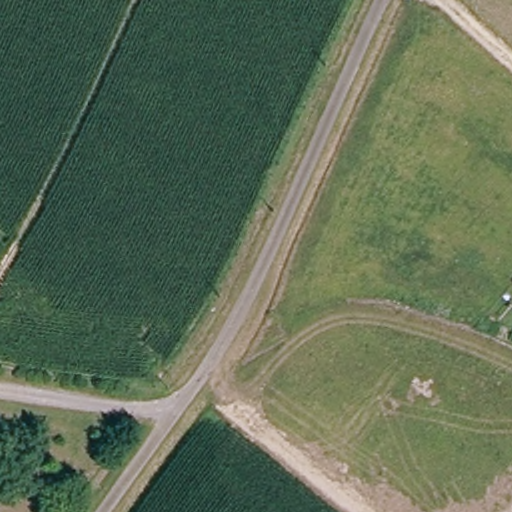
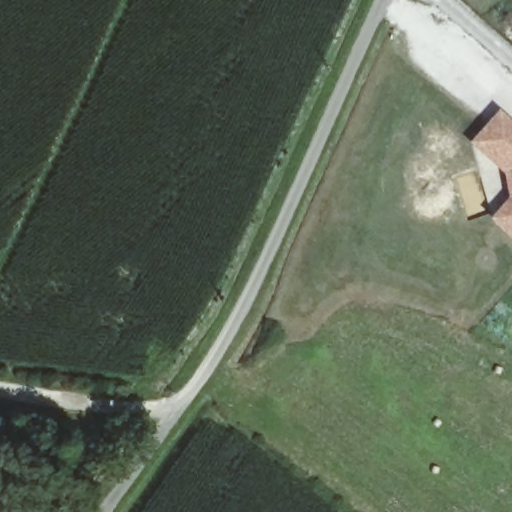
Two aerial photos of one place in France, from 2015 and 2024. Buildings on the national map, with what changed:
new [(512,239),(489,219),(508,199),(503,173),(469,145),(497,110),(512,123),(512,239)]

